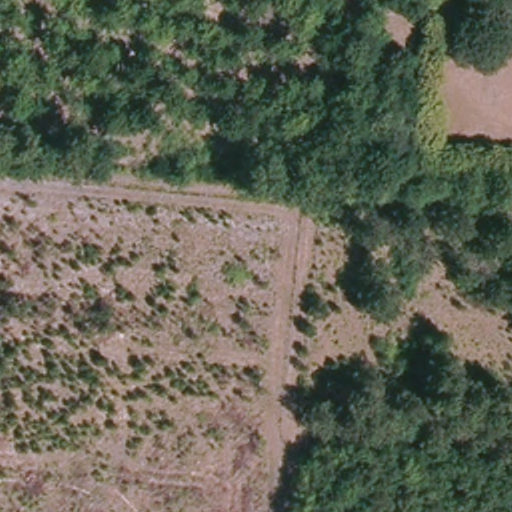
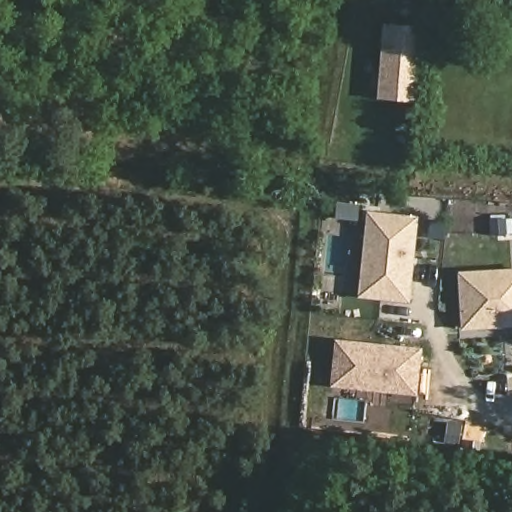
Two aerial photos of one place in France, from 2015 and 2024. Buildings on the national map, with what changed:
new [(387,26),(422,27),(416,101),(381,99),(387,26)]
new [(372,211),(420,217),(412,300),(380,296),(364,295),(367,268),(372,211)]
new [(464,272),(490,271),(512,270),(512,325),(505,325),(467,328),(464,272)]
new [(341,341),(423,350),(418,392),(394,390),(396,370),(365,366),(363,386),(336,384),(341,341)]

